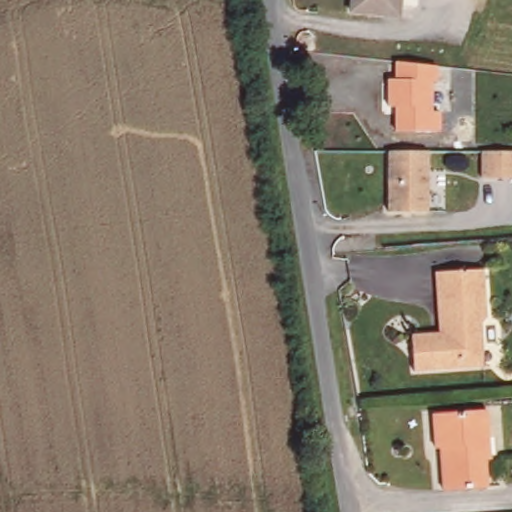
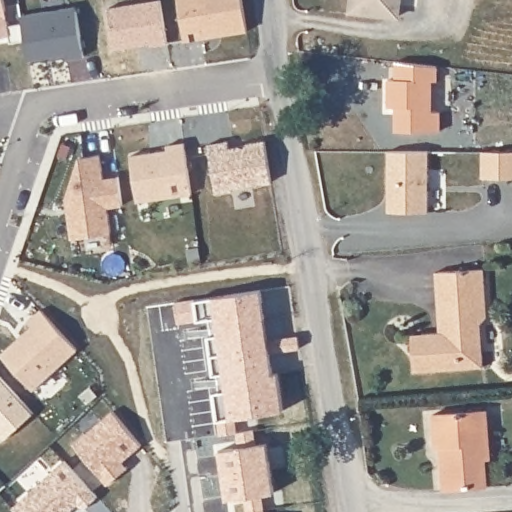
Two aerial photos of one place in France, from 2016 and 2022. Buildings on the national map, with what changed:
new [(152,47),(151,42),(116,47),(109,8),(154,0),(160,0),(167,41),(152,47)]
new [(184,41),(178,0),(241,0),(246,30),(184,41)]
unchanged [(398,18),(354,15),(356,0),(400,0),(398,18)]
unchanged [(397,82),(398,66),(438,70),(438,84),(432,84),(432,115),(439,116),(439,135),(396,134),(397,112),(389,112),(390,82),(397,82)]
new [(190,192),(138,200),(131,155),(169,149),(169,146),(184,142),(190,192)]
new [(271,183),(232,190),(232,191),(217,194),(209,145),(229,142),(230,149),(241,147),(246,149),(247,145),(265,142),(271,183)]
unchanged [(484,149),(512,149),(512,175),(484,175),(484,149)]
unchanged [(425,214),(385,213),(386,152),(426,153),(425,214)]
new [(81,157),(99,154),(103,178),(117,176),(121,205),(107,207),(110,232),(72,237),(66,197),(81,157)]
unchanged [(488,314),(482,321),(485,365),(416,370),(412,332),(441,331),(439,305),(437,270),(485,267),(488,314)]
new [(214,337),(212,319),(180,323),(177,303),(262,291),(270,341),(300,337),(302,350),(272,354),(275,375),(281,375),(286,412),(237,419),(240,433),(222,437),(217,393),(222,392),(220,375),(214,337)]
new [(2,352),(32,325),(27,321),(41,310),(77,348),(32,388),(2,352)]
new [(34,412),(5,438),(0,433),(0,376),(34,412)]
new [(74,443),(113,411),(142,444),(123,460),(128,466),(108,483),(74,443)]
unchanged [(488,412),(492,459),(487,459),(488,487),(442,490),(441,449),(435,450),(433,415),(488,412)]
new [(240,433),(255,432),(257,447),(270,445),(277,494),(265,496),(267,512),(250,512),(248,498),(230,501),(222,452),(242,449),(240,433)]
new [(65,461),(97,497),(83,510),(77,503),(67,512),(17,512),(12,507),(65,461)]

